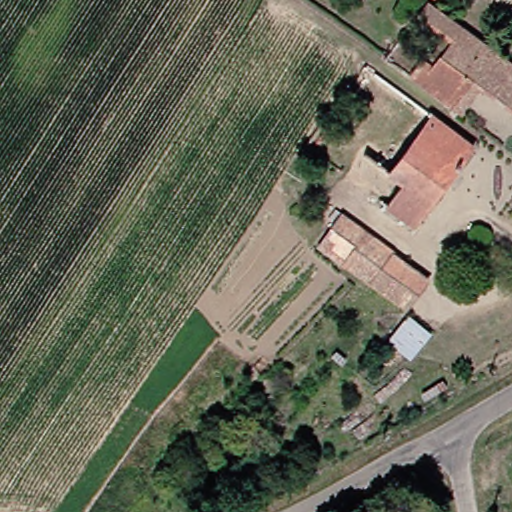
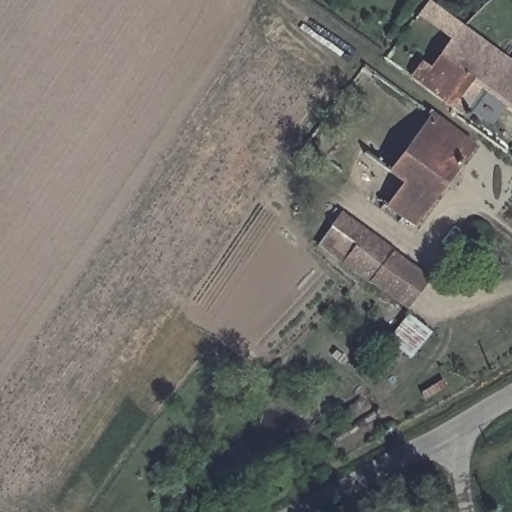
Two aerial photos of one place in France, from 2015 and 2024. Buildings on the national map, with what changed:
unchanged [(512,61),(512,107),(471,76),(450,101),(448,100),(410,68),(420,56),(431,64),(450,39),(420,13),(430,0),(436,0),(512,61)]
unchanged [(471,142),(414,222),(388,202),(401,184),(386,172),(430,111),(471,142)]
unchanged [(330,250),(317,241),(340,209),(393,248),(370,281),(330,250)]
unchanged [(370,281),(393,248),(426,273),(402,305),(370,281)]

